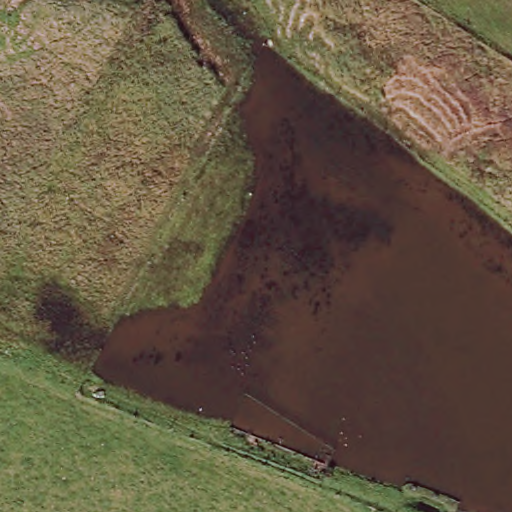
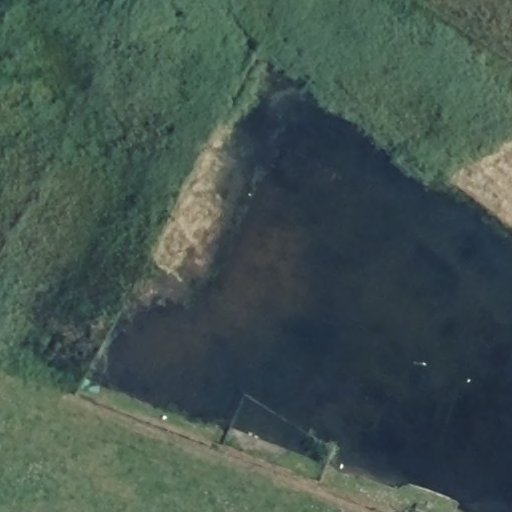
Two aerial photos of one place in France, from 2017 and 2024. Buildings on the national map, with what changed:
unchanged [(431,512),(398,512),(402,502),(431,512)]

